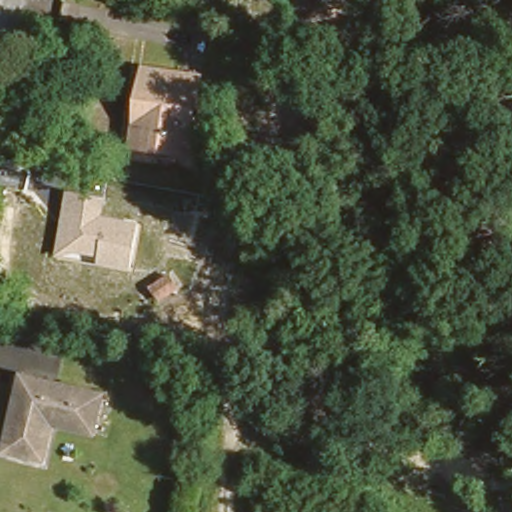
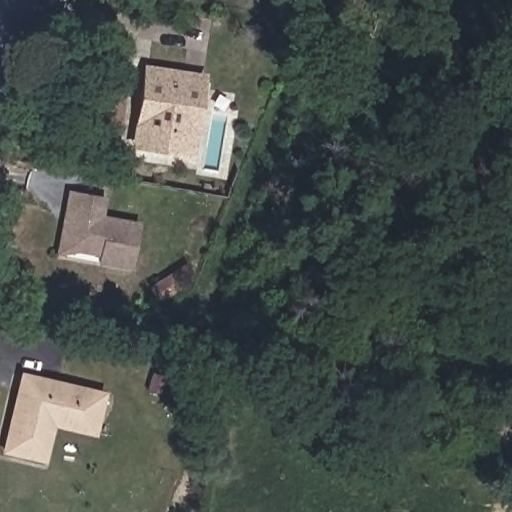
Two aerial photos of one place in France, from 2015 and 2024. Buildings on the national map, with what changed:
unchanged [(139,100),(142,77),(144,67),(180,73),(202,76),(191,154),(142,147),(132,145),(139,100)]
unchanged [(99,255),(75,252),(56,255),(67,190),(106,197),(103,216),(140,223),(132,269),(98,264),(99,255)]
unchanged [(160,299),(151,286),(169,274),(178,287),(160,299)]
unchanged [(99,428),(57,418),(48,454),(9,445),(26,369),(108,388),(99,428)]
unchanged [(161,394),(146,390),(152,372),(167,377),(161,394)]

